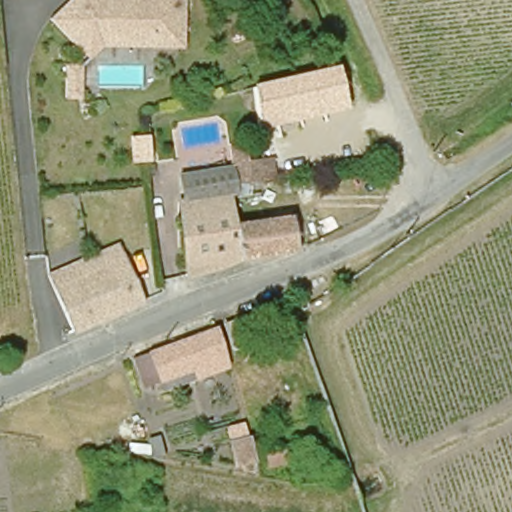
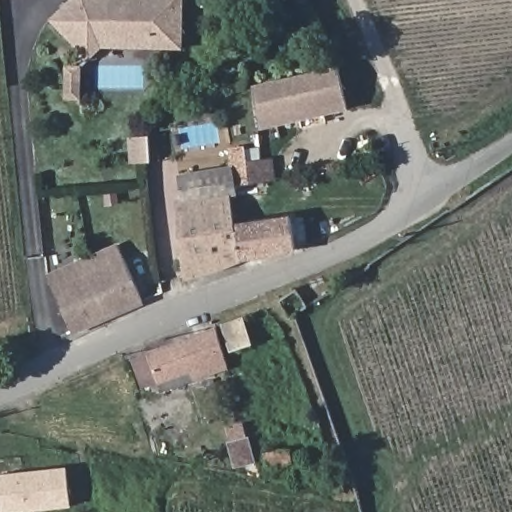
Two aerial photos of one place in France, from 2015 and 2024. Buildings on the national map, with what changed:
unchanged [(105,45),(88,59),(48,18),(67,0),(182,0),(181,48),(105,45)]
unchanged [(83,97),(65,98),(63,64),(80,64),(83,97)]
unchanged [(259,129),(253,84),(339,65),(347,108),(259,129)]
unchanged [(237,166),(268,162),(271,178),(240,183),(237,166)]
unchanged [(230,170),(235,198),(187,207),(183,178),(230,170)]
unchanged [(235,198),(237,198),(243,227),(250,257),(233,265),(195,275),(185,207),(187,207),(235,198)]
unchanged [(298,218),(305,250),(250,257),(243,227),(298,218)]
unchanged [(74,332),(44,273),(115,240),(142,299),(74,332)]
unchanged [(232,350),(225,324),(243,318),(251,343),(232,350)]
unchanged [(157,382),(142,387),(133,358),(216,328),(228,369),(194,380),(160,392),(157,382)]
new [(2,512),(0,491),(0,477),(8,472),(64,467),(68,507),(21,512),(2,512)]

